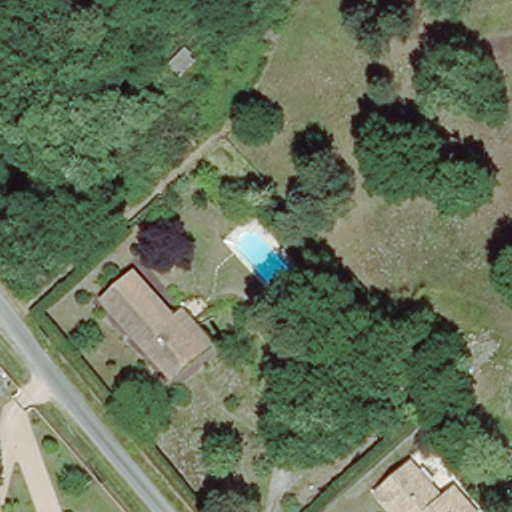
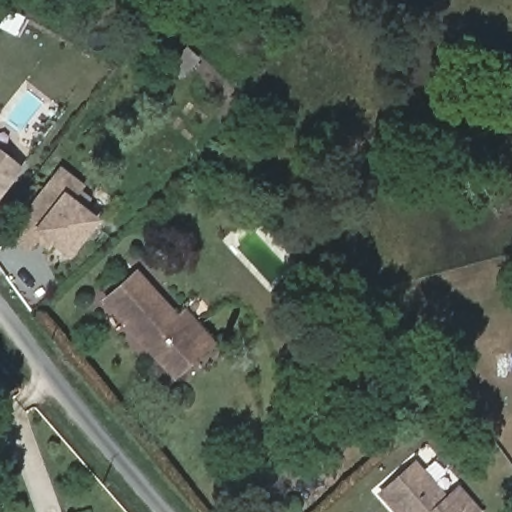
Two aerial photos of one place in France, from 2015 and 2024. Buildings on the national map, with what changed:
unchanged [(165,64),(189,43),(202,59),(179,79),(165,64)]
new [(0,149),(22,167),(0,197),(0,149)]
new [(85,186),(74,199),(100,218),(67,258),(52,245),(47,251),(36,242),(27,253),(3,233),(60,165),(85,186)]
unchanged [(215,331),(206,339),(175,367),(105,293),(136,263),(180,310),(188,302),(215,331)]
unchanged [(360,371),(345,394),(324,382),(336,360),(360,371)]
unchanged [(411,460),(443,496),(455,486),(478,512),(396,512),(377,489),(411,460)]

